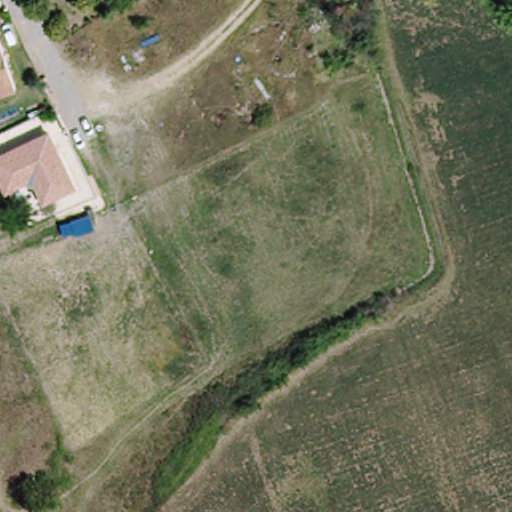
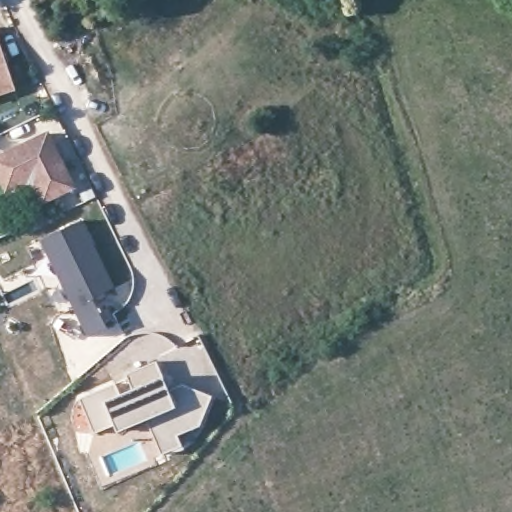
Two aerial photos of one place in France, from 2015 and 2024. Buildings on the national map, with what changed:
unchanged [(2,99),(0,96),(0,46),(18,93),(2,99)]
unchanged [(0,154),(50,130),(75,188),(44,204),(31,181),(5,193),(0,183),(0,154)]
new [(40,239),(80,220),(114,287),(92,297),(107,327),(87,336),(40,239)]
new [(116,382),(121,394),(132,389),(124,373),(156,359),(163,375),(168,387),(181,384),(213,396),(200,427),(178,436),(183,446),(161,455),(146,419),(116,433),(113,424),(93,434),(76,410),(78,398),(116,382)]

